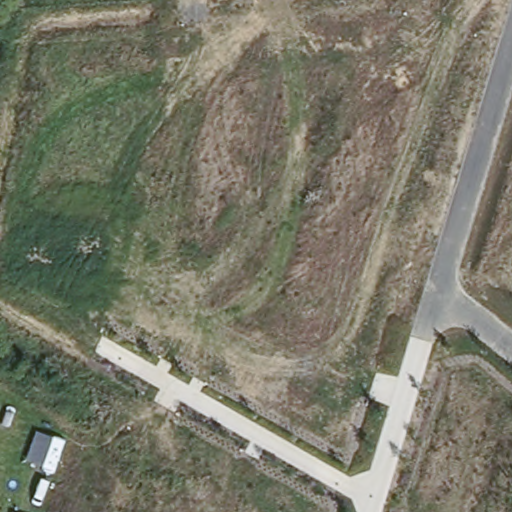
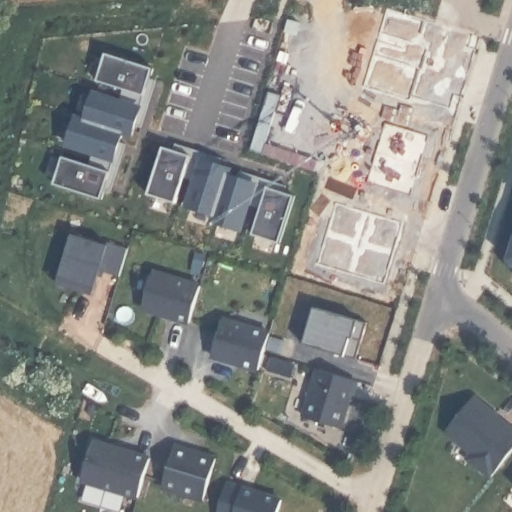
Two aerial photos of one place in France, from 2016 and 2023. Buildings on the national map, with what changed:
new [(149,77),(157,79),(143,127),(138,124),(136,130),(123,127),(104,195),(57,178),(67,151),(95,159),(97,146),(72,137),(80,111),(89,115),(97,88),(123,96),(127,82),(101,75),(109,46),(155,59),(149,77)]
new [(236,161),(234,166),(301,186),(283,237),(257,231),(265,200),(251,197),(241,227),(217,220),(219,209),(189,203),(197,177),(185,173),(178,198),(150,188),(164,138),(236,161)]
new [(75,227),(131,245),(122,276),(104,270),(97,296),(58,284),(75,227)]
new [(510,261),(512,255),(512,263),(510,261)]
new [(145,308),(156,272),(203,286),(192,322),(145,308)]
new [(314,303),(371,320),(362,357),(302,339),(314,303)]
new [(215,356),(226,319),(272,334),(262,370),(215,356)]
new [(322,369),(358,380),(343,428),(307,417),(322,369)]
new [(512,426),(512,448),(490,476),(467,457),(471,453),(442,431),(476,392),(512,426)]
new [(85,480),(97,441),(153,458),(141,497),(85,480)]
new [(166,487),(178,446),(219,459),(207,500),(166,487)]
new [(230,483),(285,500),(281,512),(221,512),(230,483)]

